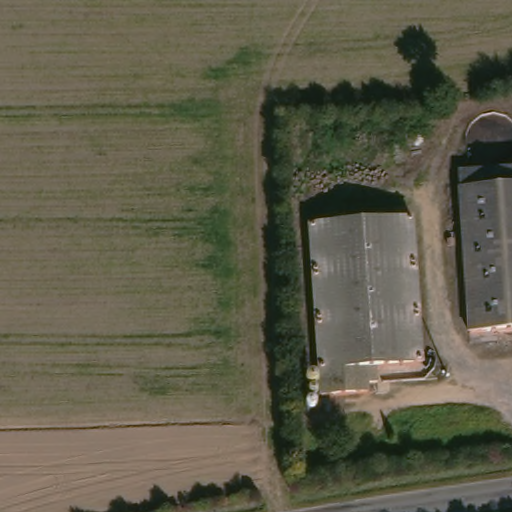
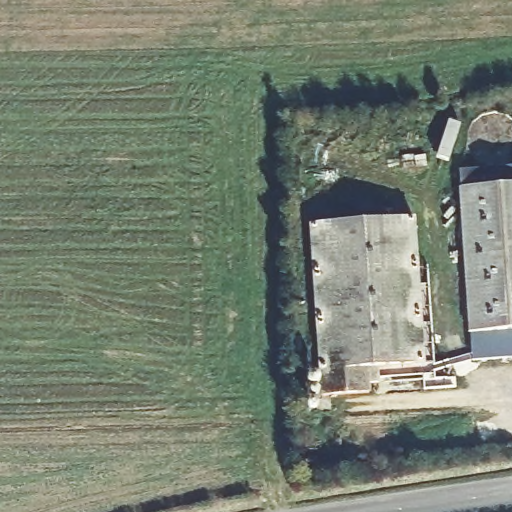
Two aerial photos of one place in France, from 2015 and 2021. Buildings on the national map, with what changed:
unchanged [(472,330),(460,168),(512,165),(512,327),(472,330)]
unchanged [(423,360),(367,363),(368,389),(322,390),(314,221),(416,215),(423,360)]

